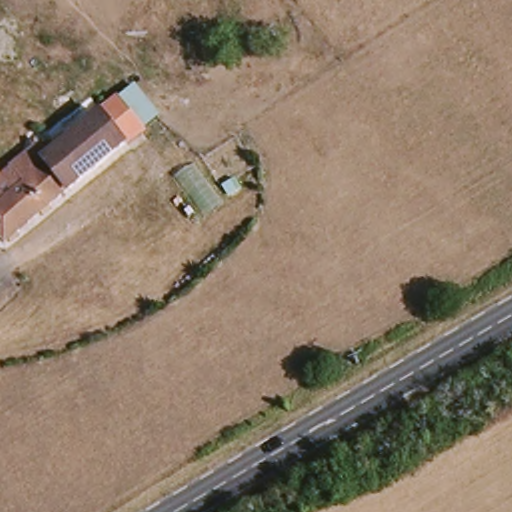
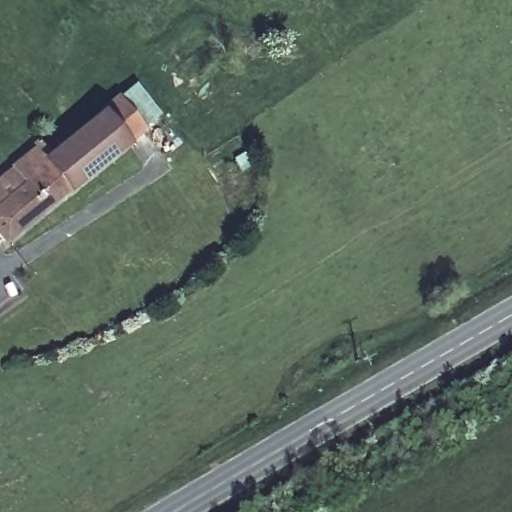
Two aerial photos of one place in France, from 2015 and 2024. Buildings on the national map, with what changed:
unchanged [(102,116),(122,100),(147,133),(129,148),(102,116)]
unchanged [(33,224),(3,243),(0,238),(0,189),(16,177),(13,169),(40,147),(48,155),(51,153),(102,116),(129,148),(62,199),(33,224)]

